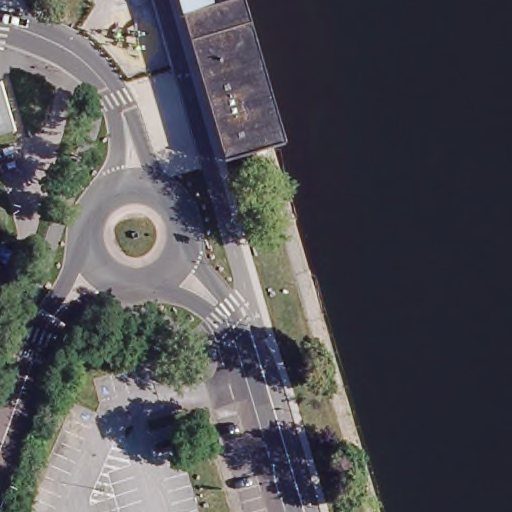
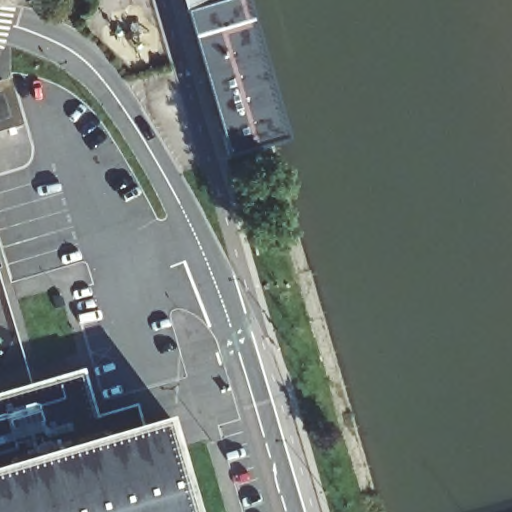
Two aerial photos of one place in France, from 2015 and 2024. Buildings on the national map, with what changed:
unchanged [(181,0),(212,0),(256,150),(228,158),(181,0)]
unchanged [(244,0),(286,141),(256,150),(212,0),(244,0)]
unchanged [(19,120),(0,126),(0,74),(6,72),(19,120)]
new [(98,407),(143,397),(144,417),(168,412),(193,512),(0,512),(0,386),(85,365),(98,407)]

